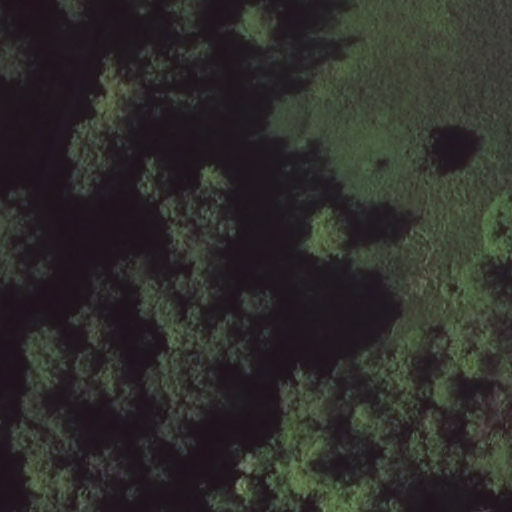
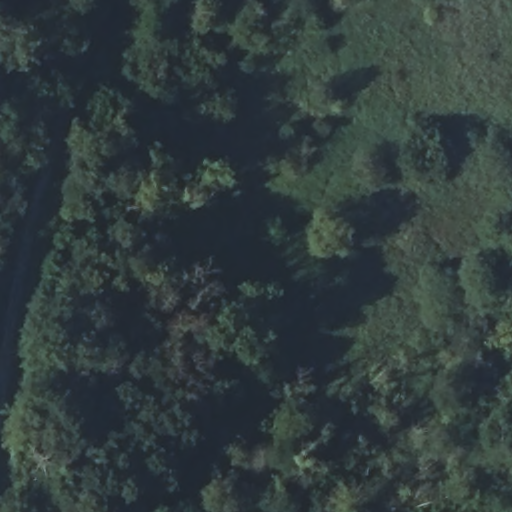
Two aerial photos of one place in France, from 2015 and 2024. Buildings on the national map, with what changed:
[]

